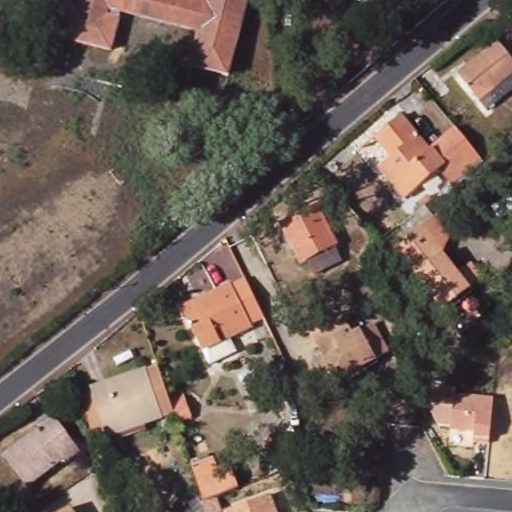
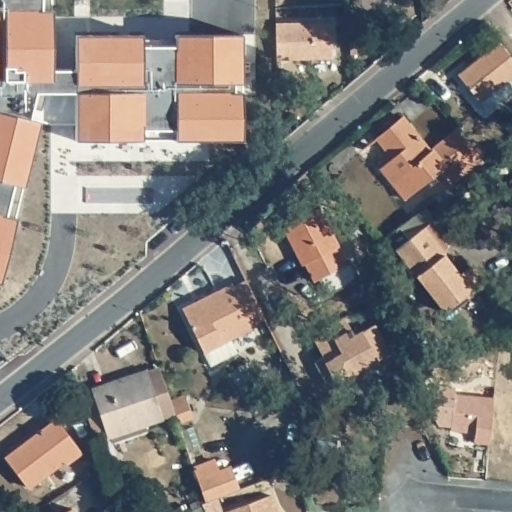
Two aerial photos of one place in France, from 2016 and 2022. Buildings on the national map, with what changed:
new [(52,0),(52,69),(76,69),(74,34),(242,34),(242,140),(75,140),(75,123),(40,124),(0,282),(0,0),(52,0)]
demolished [(200,31),(110,9),(108,15),(120,19),(112,50),(59,36),(67,6),(78,9),(80,1),(74,0),(246,0),(228,74),(191,64),(200,31)]
new [(330,20),(330,56),(274,57),(274,21),(330,20)]
unchanged [(455,75),(497,43),(512,61),(512,86),(483,109),(475,101),(455,75)]
unchanged [(464,165),(458,156),(405,198),(391,180),(405,170),(377,138),(405,116),(432,149),(458,128),(478,153),(464,165)]
unchanged [(317,204),(338,243),(334,245),(341,258),(316,273),(309,259),(302,263),(281,225),(317,204)]
new [(468,285),(470,288),(441,309),(416,274),(385,234),(425,206),(454,247),(445,253),(459,272),(472,263),(482,274),(468,285)]
demolished [(451,277),(461,269),(473,285),(435,314),(388,251),(416,229),(451,277)]
unchanged [(211,366),(204,352),(184,309),(244,278),(263,318),(251,324),(253,327),(232,337),(239,351),(211,366)]
unchanged [(324,381),(313,361),(320,357),(316,348),(308,334),(341,315),(349,329),(351,334),(368,325),(384,354),(374,359),(377,364),(364,371),(337,386),(329,391),(324,381)]
unchanged [(96,386),(158,364),(172,402),(174,408),(148,417),(151,424),(115,438),(111,427),(94,433),(93,430),(81,395),(98,389),(96,386)]
unchanged [(478,445),(479,434),(454,434),(456,417),(442,416),(445,401),(459,403),(459,396),(498,399),(494,446),(478,445)]
unchanged [(77,451),(60,464),(58,459),(22,488),(1,459),(35,433),(32,429),(49,416),(77,451)]
unchanged [(210,459),(214,469),(228,464),(238,489),(207,501),(194,466),(210,459)]
unchanged [(270,495),(276,512),(223,512),(270,495)]
unchanged [(69,507),(72,512),(60,512),(69,507)]

